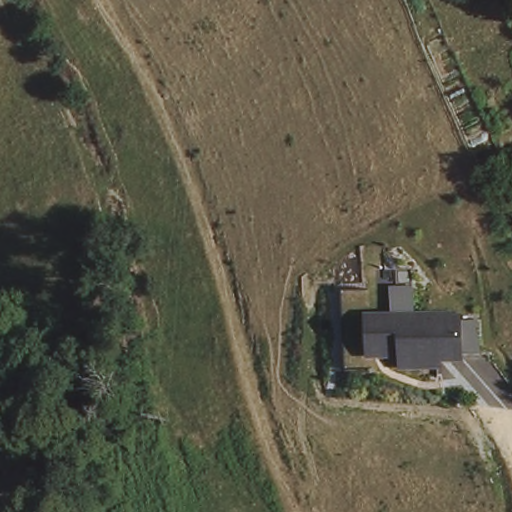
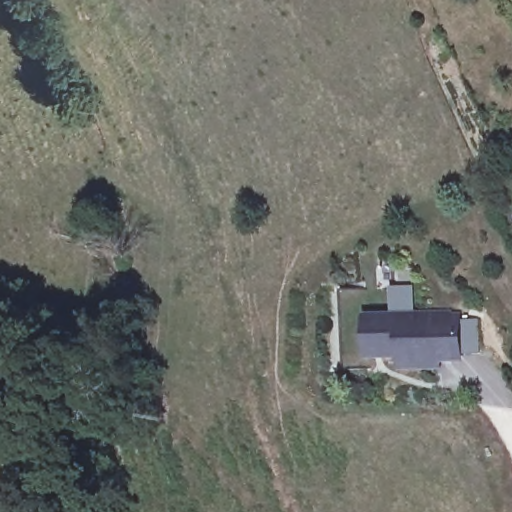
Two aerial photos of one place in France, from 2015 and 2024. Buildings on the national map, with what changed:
unchanged [(366,292),(366,318),(441,313),(442,321),(477,319),(477,332),(465,333),(465,360),(437,365),(437,374),(400,377),(400,361),(375,361),(370,344),(365,344),(367,370),(346,371),(342,293),(366,292)]

